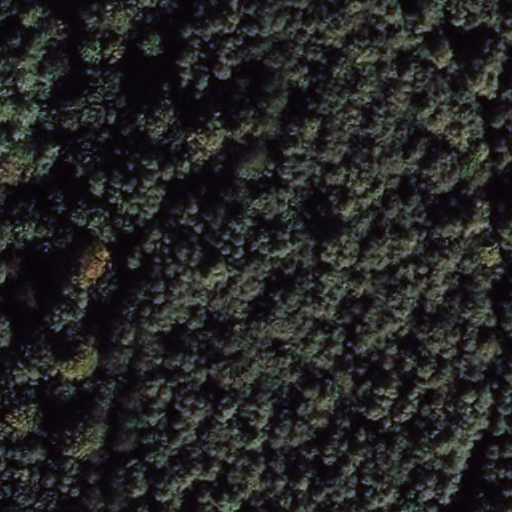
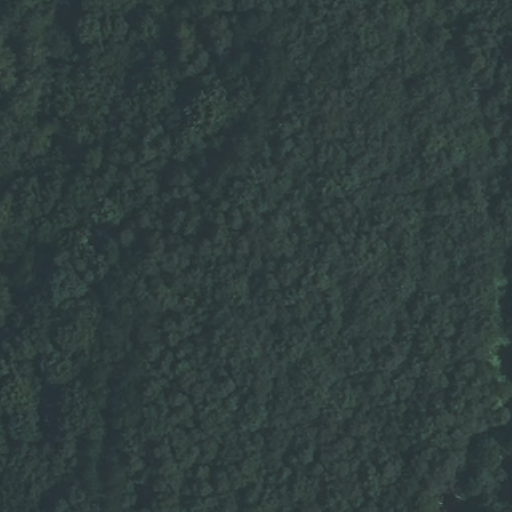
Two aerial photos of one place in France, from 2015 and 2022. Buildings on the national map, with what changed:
[]

